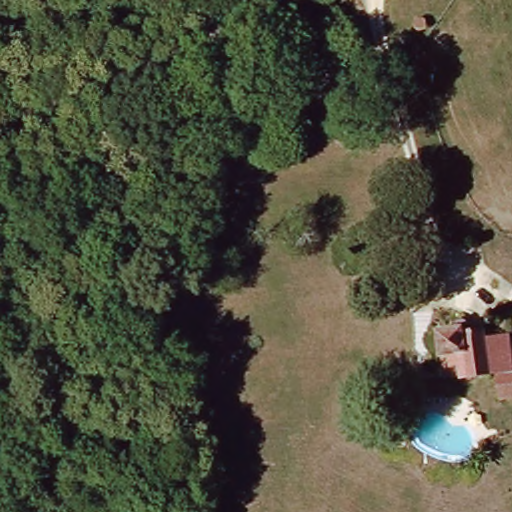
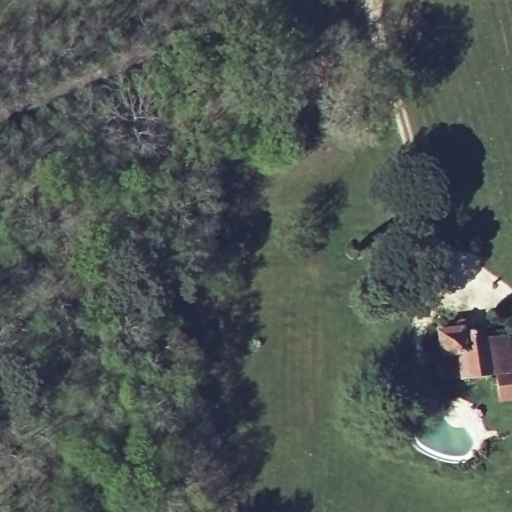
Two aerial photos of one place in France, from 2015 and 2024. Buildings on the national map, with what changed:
unchanged [(434,337),(452,333),(451,330),(463,328),(465,332),(479,328),(482,340),(504,338),(507,373),(512,373),(512,401),(496,402),(494,382),(459,385),(456,357),(438,360),(434,337)]

